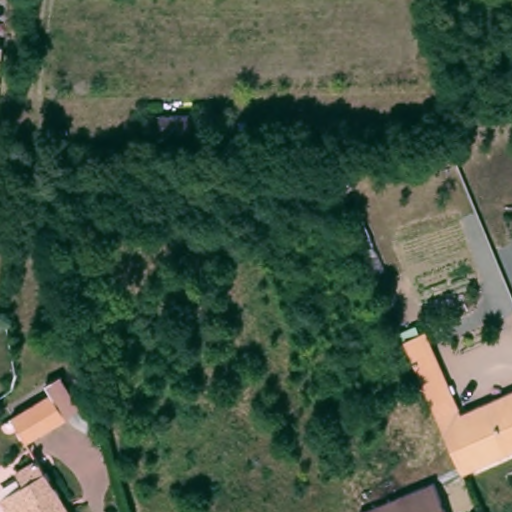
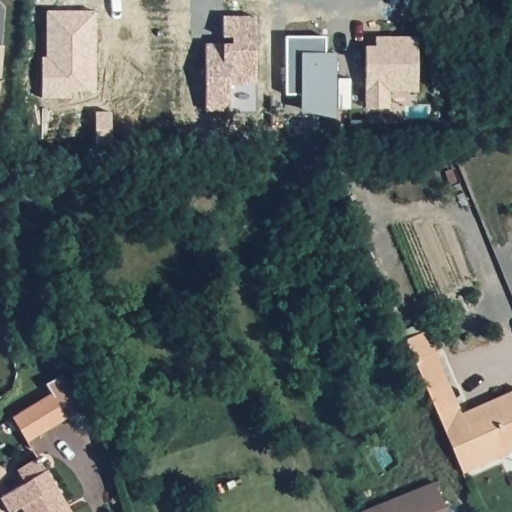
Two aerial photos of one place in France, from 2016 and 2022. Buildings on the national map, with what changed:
new [(232,45),(232,38),(224,38),(223,18),(255,18),(255,86),(230,86),(230,112),(205,112),(205,45),(232,45)]
new [(301,108),(301,93),(286,93),(286,35),(325,35),(326,54),(335,54),(335,108),(335,115),(301,108)]
new [(366,49),(376,49),(376,39),(417,38),(418,95),(390,95),(390,111),(366,110),(366,49)]
unchanged [(1,45),(0,59),(0,45),(1,45)]
new [(366,119),(366,131),(351,131),(350,120),(366,119)]
unchanged [(189,134),(189,155),(158,154),(158,133),(189,134)]
unchanged [(404,342),(426,331),(459,405),(438,415),(404,342)]
unchanged [(464,413),(512,393),(512,452),(466,473),(438,415),(459,405),(464,413)]
unchanged [(67,420),(26,446),(10,422),(52,395),(67,420)]
unchanged [(18,474),(40,459),(75,512),(30,512),(28,508),(23,512),(10,512),(4,500),(26,486),(18,474)]
unchanged [(367,512),(442,480),(456,512),(367,512)]

